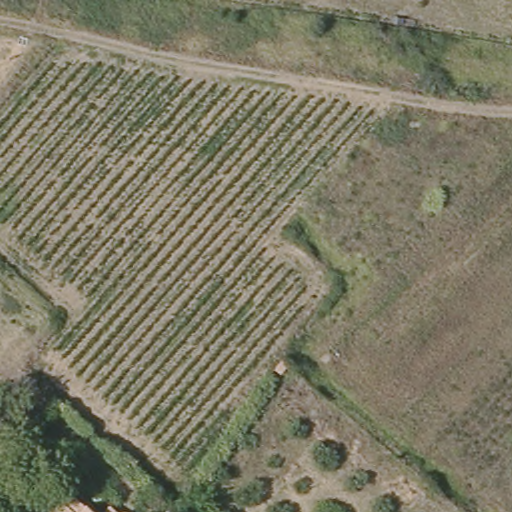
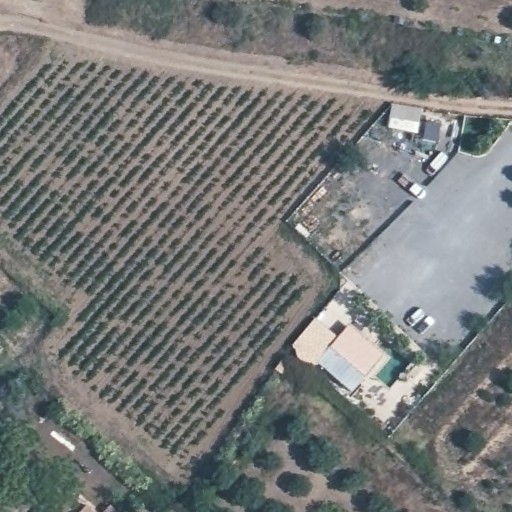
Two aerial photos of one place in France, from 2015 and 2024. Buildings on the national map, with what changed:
new [(318,365),(333,348),(352,325),(384,352),(365,375),(351,392),(318,365)]
unchanged [(284,375),(277,370),(285,359),(292,364),(284,375)]
unchanged [(75,493),(89,505),(90,505),(98,512),(59,512),(75,493)]
unchanged [(112,505),(119,512),(106,512),(112,505)]
unchanged [(130,512),(128,512),(129,511),(130,512)]

